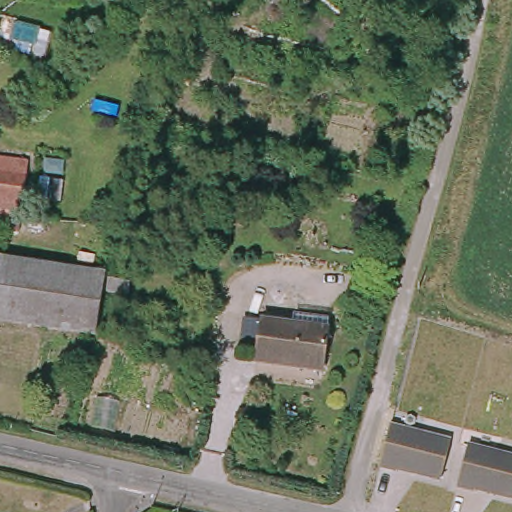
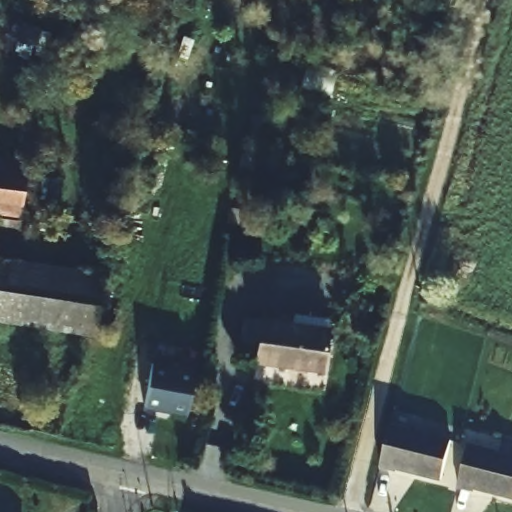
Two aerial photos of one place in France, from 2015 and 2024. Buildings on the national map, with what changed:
unchanged [(0,158),(26,161),(20,220),(19,230),(0,228),(0,158)]
unchanged [(24,323),(0,319),(0,257),(32,262),(24,323)]
unchanged [(103,273),(94,334),(24,323),(32,262),(103,273)]
unchanged [(327,329),(322,370),(255,361),(262,320),(327,329)]
new [(195,370),(187,414),(144,406),(152,362),(195,370)]
unchanged [(452,438),(442,483),(379,467),(390,423),(452,438)]
unchanged [(512,453),(512,501),(459,488),(469,443),(512,453)]

